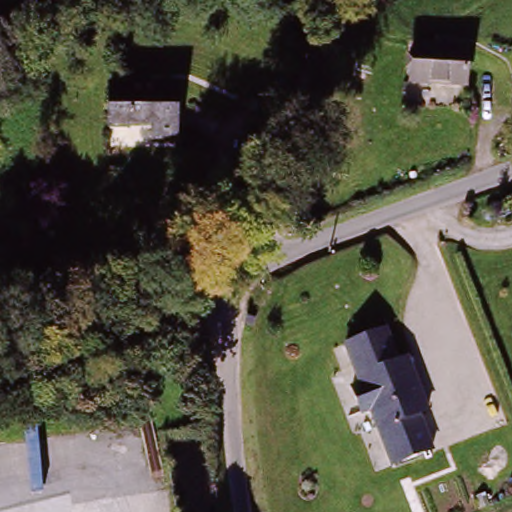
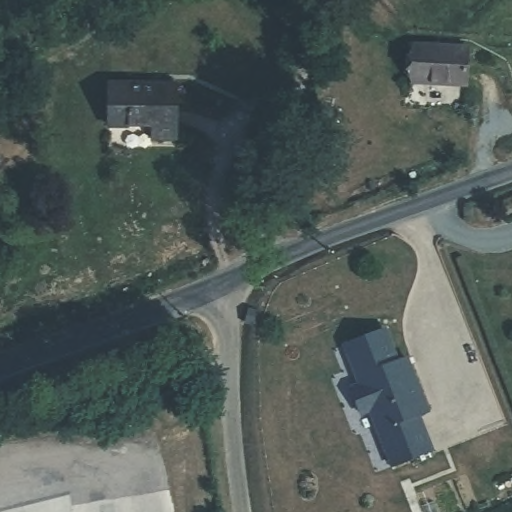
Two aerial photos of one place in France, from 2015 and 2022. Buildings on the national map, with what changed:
unchanged [(469,45),(465,81),(412,77),(415,39),(469,45)]
unchanged [(154,56),(208,117),(167,159),(151,140),(160,125),(123,88),(154,56)]
unchanged [(385,330),(402,372),(409,369),(429,415),(418,420),(431,453),(388,467),(367,413),(358,417),(350,390),(358,386),(341,346),(385,330)]

